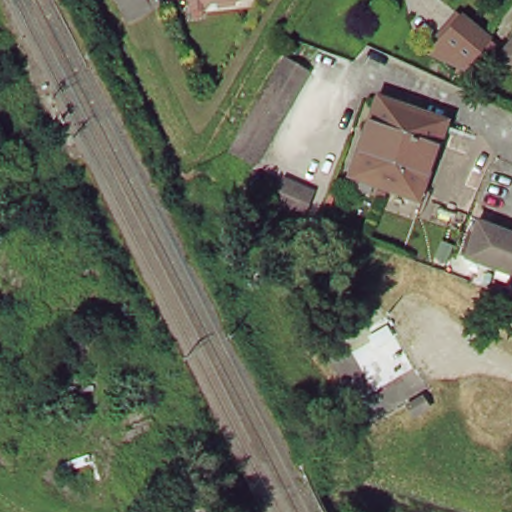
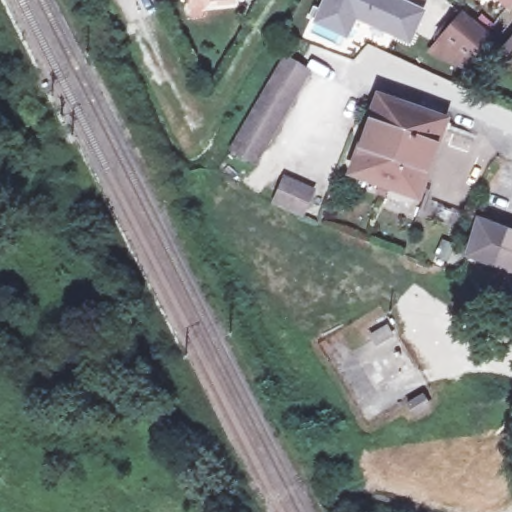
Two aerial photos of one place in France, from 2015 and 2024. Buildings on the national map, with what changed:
unchanged [(201,8),(188,9),(187,0),(206,0),(201,8)]
unchanged [(214,4),(214,0),(232,0),(233,2),(214,4)]
new [(319,0),(407,0),(425,8),(409,42),(356,18),(346,38),(309,20),(319,0)]
new [(506,4),(501,0),(509,0),(506,4)]
unchanged [(480,72),(469,62),(444,42),(463,19),(488,40),(499,49),(480,72)]
unchanged [(512,41),(512,69),(499,57),(512,41)]
unchanged [(228,149),(281,54),(309,69),(256,165),(228,149)]
unchanged [(359,174),(386,99),(448,120),(420,194),(359,174)]
unchanged [(274,203),(286,177),(311,190),(298,214),(274,203)]
unchanged [(483,222),(512,233),(512,275),(470,261),(483,222)]
unchanged [(384,312),(397,336),(361,355),(356,346),(371,338),(363,323),(384,312)]
unchanged [(395,365),(388,352),(397,347),(404,361),(395,365)]
unchanged [(420,398),(404,406),(399,395),(414,387),(420,398)]

